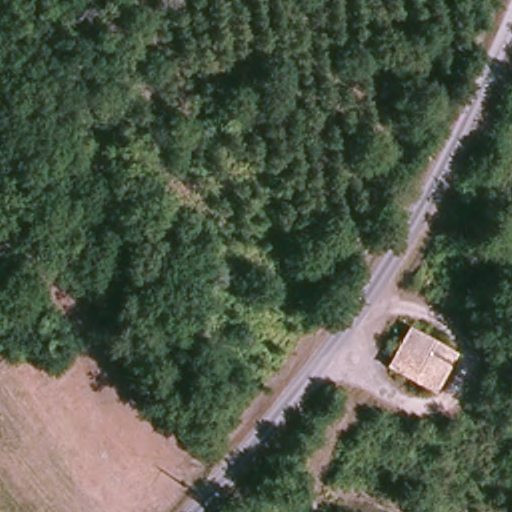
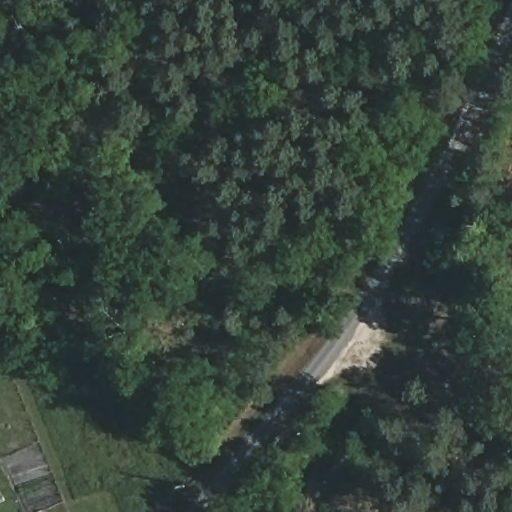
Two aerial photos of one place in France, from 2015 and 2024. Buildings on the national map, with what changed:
demolished [(450,352),(433,387),(395,362),(415,330),(450,352)]

